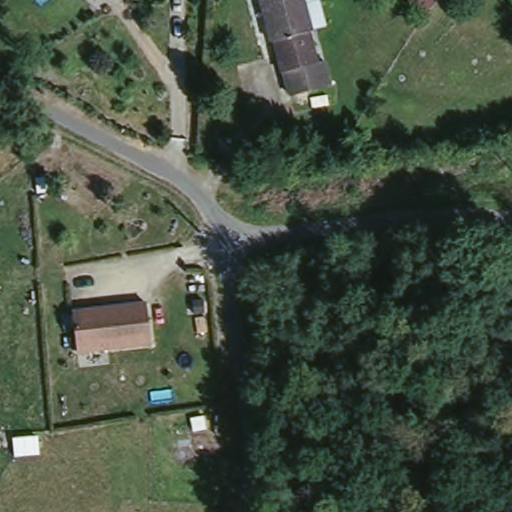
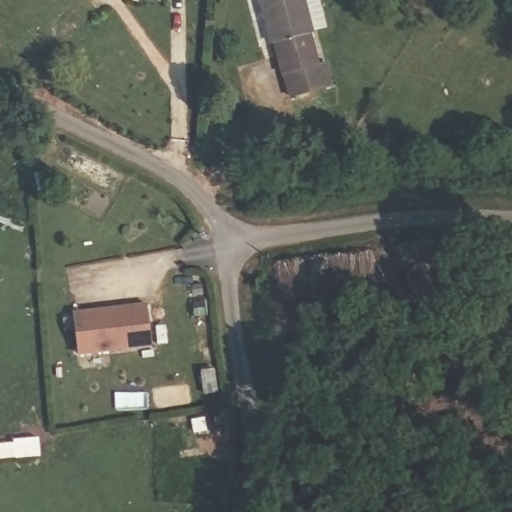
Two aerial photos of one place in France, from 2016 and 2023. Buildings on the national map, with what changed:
unchanged [(304,36),(300,37),(309,66),(315,66),(319,87),(283,99),(276,73),(273,73),(268,48),(263,48),(252,0),(294,0),(304,36)]
unchanged [(404,0),(437,0),(416,15),(404,0)]
unchanged [(149,343),(75,351),(71,313),(70,310),(98,307),(145,302),(149,343)]

